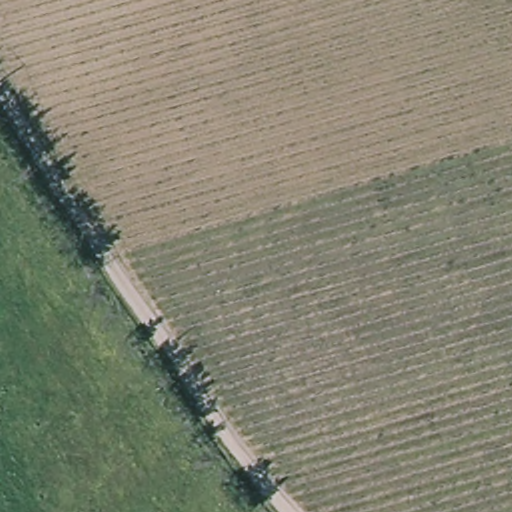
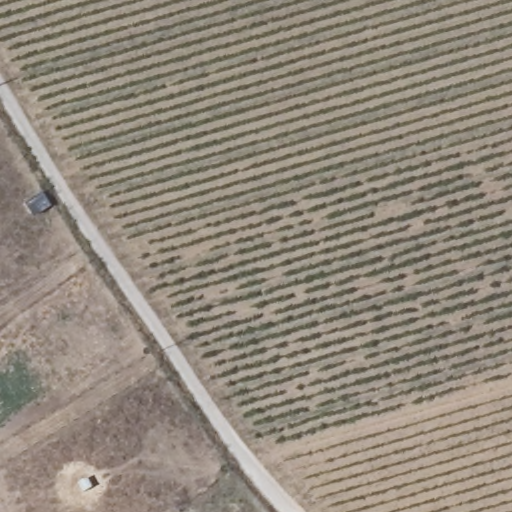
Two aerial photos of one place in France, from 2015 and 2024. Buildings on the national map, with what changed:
[]

